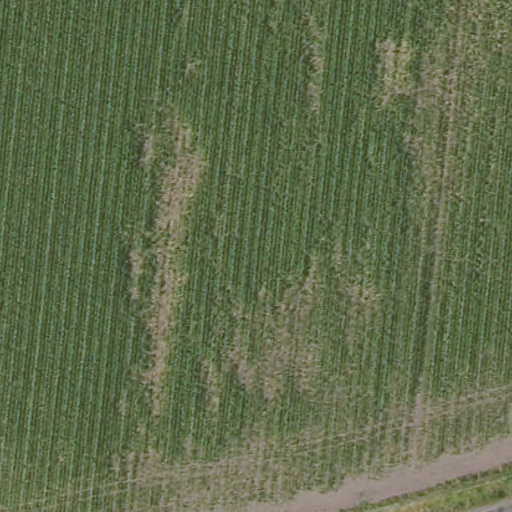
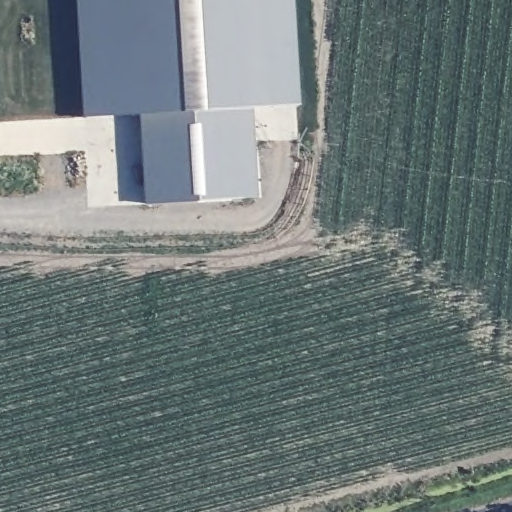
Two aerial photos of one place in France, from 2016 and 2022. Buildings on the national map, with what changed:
new [(250,105),(255,196),(145,203),(138,112),(80,119),(73,0),(292,0),(297,101),(250,105)]

